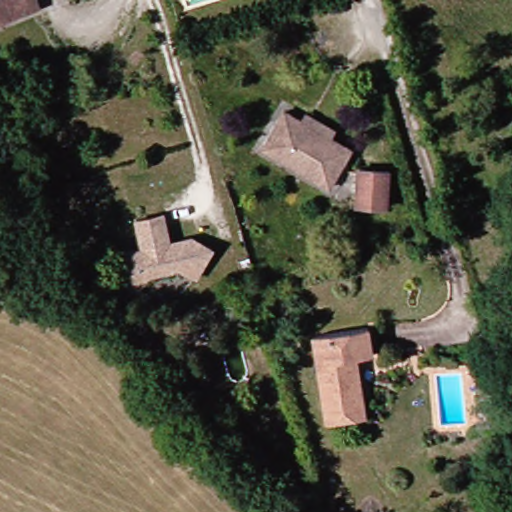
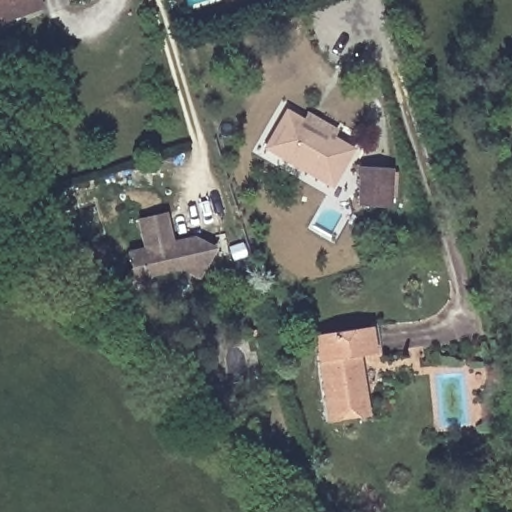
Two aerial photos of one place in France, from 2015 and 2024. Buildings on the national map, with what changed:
unchanged [(30,0),(31,2),(35,11),(0,25),(0,0),(30,0)]
unchanged [(324,190),(258,150),(280,113),(297,123),(303,113),(332,130),(325,140),(346,152),(324,190)]
unchanged [(352,207),(352,169),(383,170),(381,209),(352,207)]
unchanged [(195,232),(216,244),(201,273),(183,263),(153,271),(142,288),(126,275),(134,263),(130,249),(147,245),(143,228),(140,215),(166,210),(169,221),(173,238),(195,232)]
unchanged [(355,421),(321,425),(308,338),(365,330),(372,329),(377,355),(370,356),(355,358),(361,400),(364,420),(355,421)]

